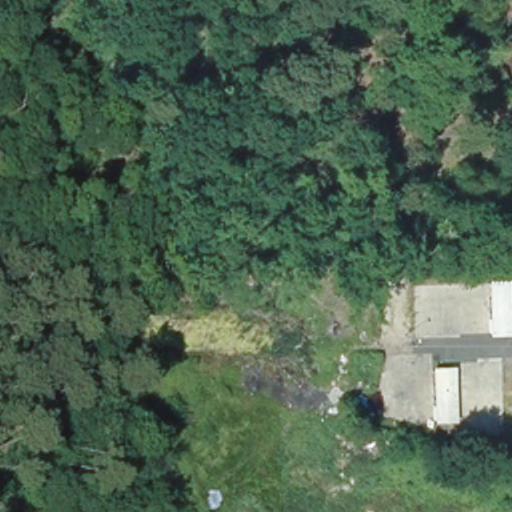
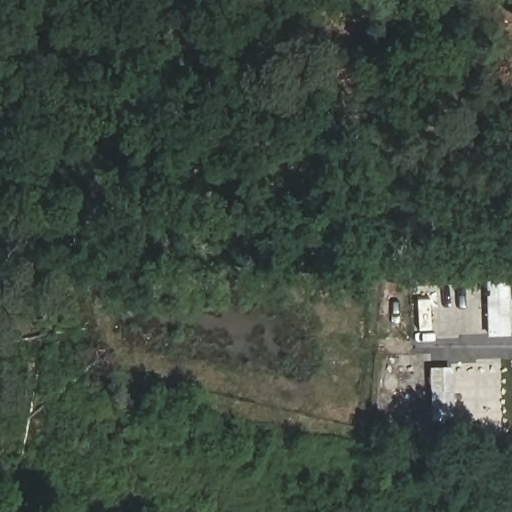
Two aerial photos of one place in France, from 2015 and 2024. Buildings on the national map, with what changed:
unchanged [(507,282),(509,332),(489,333),(487,283),(507,282)]
unchanged [(451,372),(453,421),(433,422),(432,372),(451,372)]

